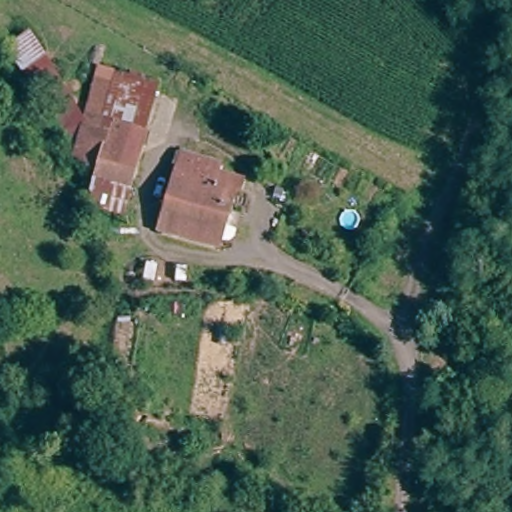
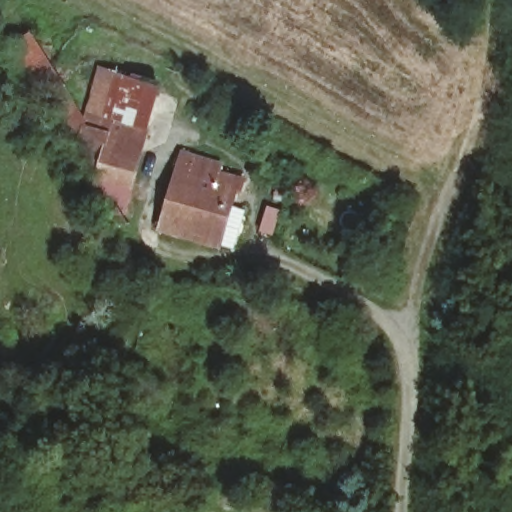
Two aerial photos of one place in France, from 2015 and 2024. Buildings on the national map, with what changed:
unchanged [(62,84),(40,97),(6,49),(29,33),(62,84)]
unchanged [(125,217),(104,213),(57,122),(79,109),(82,115),(100,63),(159,81),(125,217)]
unchanged [(235,179),(217,254),(157,236),(176,159),(235,179)]
unchanged [(310,298),(302,314),(281,303),(288,285),(310,298)]

